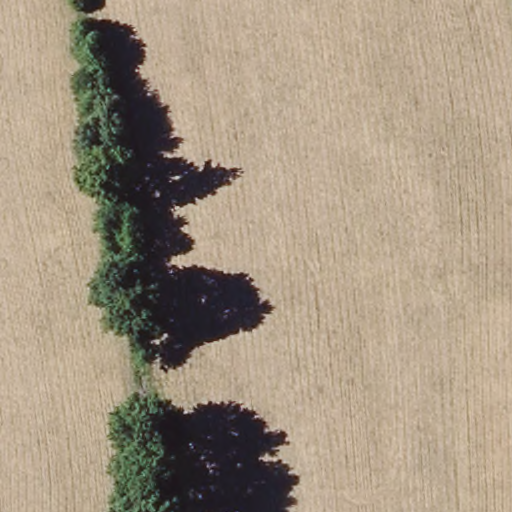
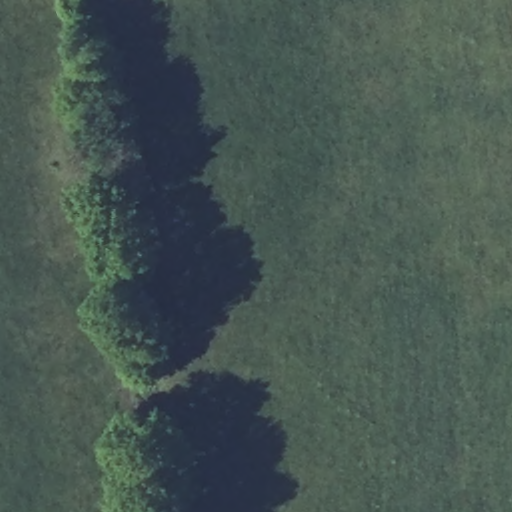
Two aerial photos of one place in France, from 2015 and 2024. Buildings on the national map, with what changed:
[]

